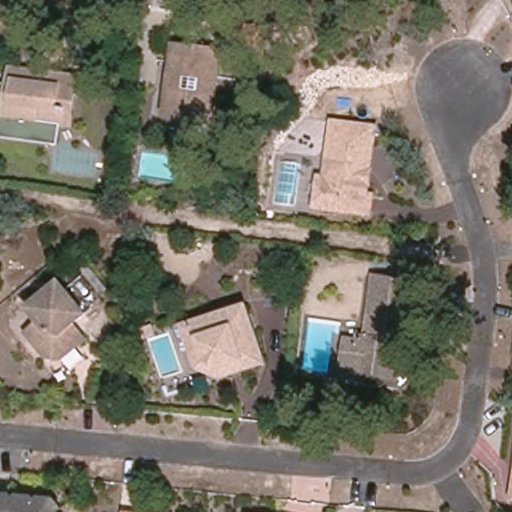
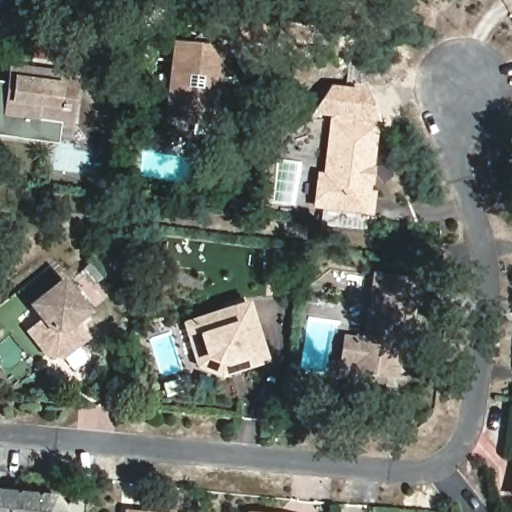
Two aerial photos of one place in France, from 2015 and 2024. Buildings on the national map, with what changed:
unchanged [(222,50),(213,121),(167,115),(174,44),(222,50)]
unchanged [(55,141),(38,139),(0,134),(0,85),(9,87),(11,68),(76,76),(72,110),(70,125),(57,124),(55,141)]
new [(330,86),(365,91),(378,124),(377,128),(337,123),(337,119),(310,116),(330,86)]
unchanged [(377,128),(371,196),(377,196),(375,214),(328,209),(317,197),(320,180),(327,176),(337,123),(377,128)]
unchanged [(343,338),(355,339),(355,333),(362,333),(369,273),(414,277),(405,342),(399,340),(393,373),(352,367),(352,359),(341,359),(343,338)]
unchanged [(87,312),(75,323),(85,335),(57,355),(47,354),(30,331),(40,321),(29,305),(62,280),(87,312)]
unchanged [(195,374),(190,358),(183,332),(226,319),(230,325),(247,320),(260,370),(242,376),(216,383),(195,374)]
unchanged [(64,512),(0,512),(0,497),(59,503),(64,512)]

